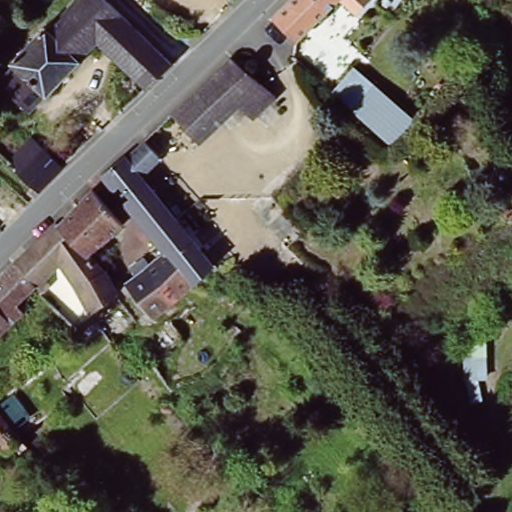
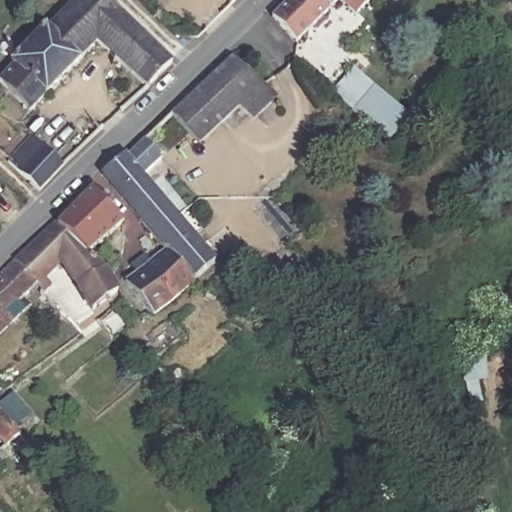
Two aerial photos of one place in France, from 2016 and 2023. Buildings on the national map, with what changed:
unchanged [(104,0),(170,61),(172,63),(146,91),(96,45),(30,113),(0,83),(0,76),(12,65),(8,61),(32,37),(43,26),(47,29),(75,0),(104,0)]
unchanged [(376,9),(373,6),(355,23),(338,6),(296,47),(270,22),(292,0),(381,0),(383,3),(376,9)]
unchanged [(276,97),(246,129),(237,121),(246,113),(227,98),(207,81),(229,58),(276,97)]
unchanged [(332,90),(358,60),(422,117),(395,144),(332,90)]
unchanged [(227,98),(191,133),(188,130),(173,114),(207,81),(227,98)]
unchanged [(104,175),(131,151),(133,154),(150,138),(168,157),(143,179),(219,266),(202,279),(194,286),(164,255),(106,179),(104,175)]
unchanged [(40,140),(73,173),(44,201),(16,176),(11,169),(40,140)]
unchanged [(59,226),(95,190),(125,226),(109,242),(123,259),(109,272),(59,226)]
unchanged [(59,226),(109,272),(120,292),(95,312),(64,267),(48,278),(54,287),(44,294),(38,288),(16,264),(57,224),(59,226)]
unchanged [(170,306),(143,273),(164,255),(194,286),(170,306)]
unchanged [(16,264),(38,288),(28,298),(34,306),(0,338),(0,279),(16,264)]
unchanged [(143,273),(170,306),(152,321),(125,288),(143,273)]
unchanged [(18,433),(2,447),(0,444),(0,411),(18,433)]

